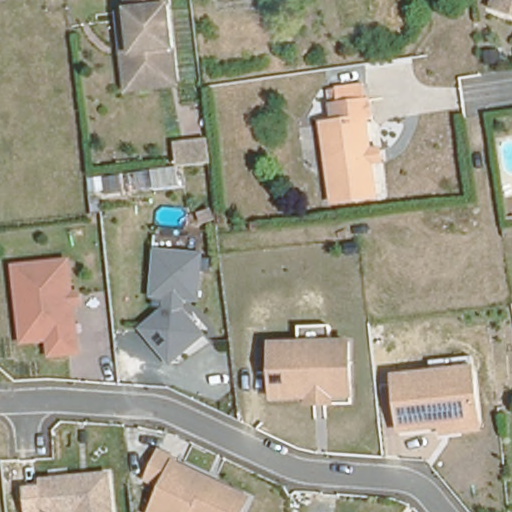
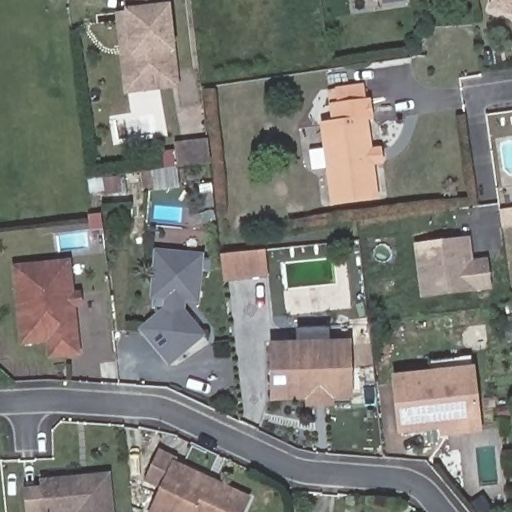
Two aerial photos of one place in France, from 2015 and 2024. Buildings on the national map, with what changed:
unchanged [(124,101),(115,18),(127,17),(125,0),(171,0),(173,10),(176,57),(178,95),(124,101)]
unchanged [(489,0),(512,0),(512,15),(487,6),(489,0)]
unchanged [(366,97),(369,121),(366,122),(369,147),(381,145),(384,164),(372,166),(376,198),(329,204),(317,122),(330,119),(326,103),(324,89),(362,84),(366,97)]
unchanged [(175,168),(170,142),(206,136),(211,162),(175,168)]
new [(512,226),(501,227),(499,212),(511,211),(512,210),(512,226)]
new [(421,298),(414,244),(471,237),(473,258),(489,257),(492,290),(421,298)]
unchanged [(195,298),(181,297),(179,311),(199,333),(168,360),(139,329),(164,308),(165,298),(150,298),(156,251),(201,254),(195,298)]
new [(267,251),(270,275),(221,282),(217,257),(267,251)]
unchanged [(67,261),(72,338),(21,342),(13,267),(67,261)]
unchanged [(353,340),(354,399),(333,399),(333,406),(305,406),(305,401),(269,401),(267,341),(353,340)]
unchanged [(441,437),(438,430),(399,435),(392,376),(476,366),(484,432),(441,437)]
unchanged [(249,496),(242,512),(145,512),(173,460),(249,496)]
unchanged [(114,512),(42,512),(37,477),(110,471),(114,512)]

